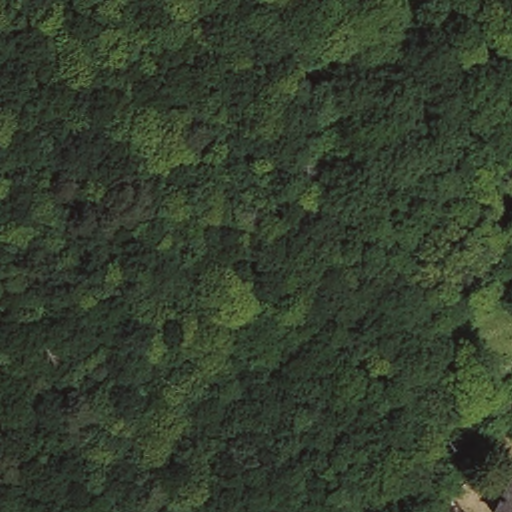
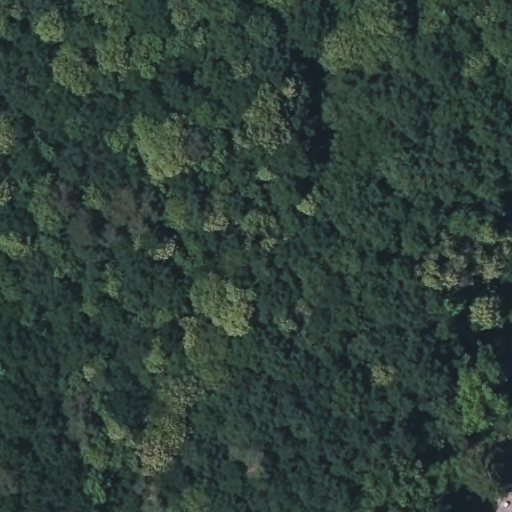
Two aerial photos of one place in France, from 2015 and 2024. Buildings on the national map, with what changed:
unchanged [(512,489),(512,512),(500,512),(512,489)]

